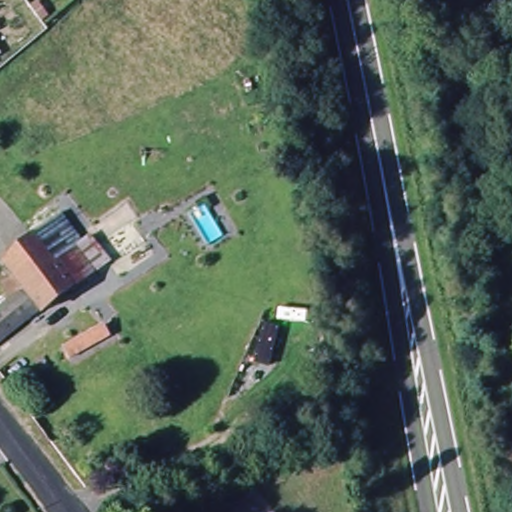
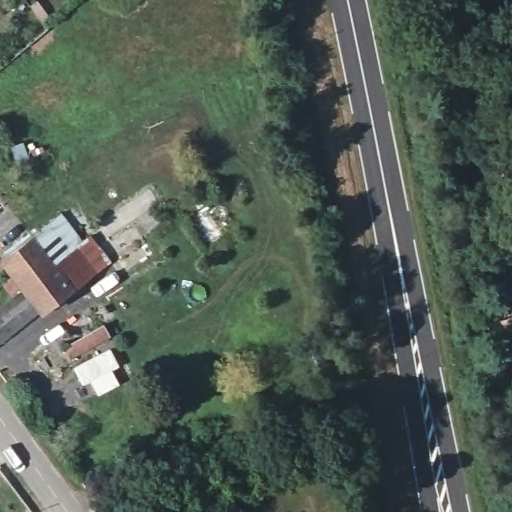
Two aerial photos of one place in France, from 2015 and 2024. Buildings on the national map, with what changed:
unchanged [(25,300),(14,283),(25,274),(14,259),(61,225),(79,251),(97,275),(78,288),(0,342),(0,315),(25,300)]
unchanged [(71,363),(65,355),(96,333),(103,343),(71,363)]

